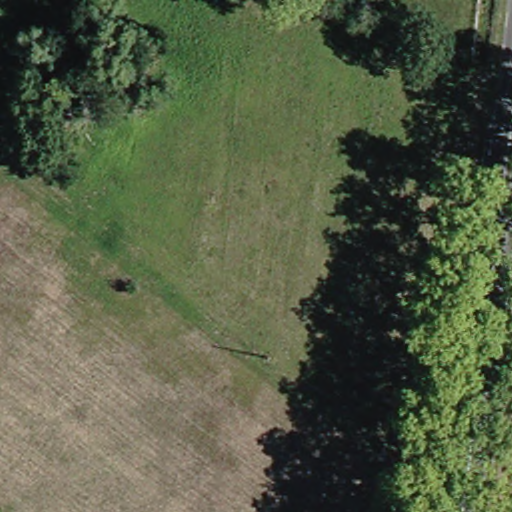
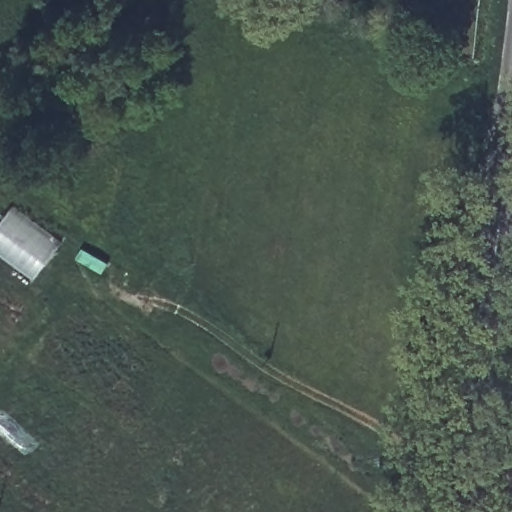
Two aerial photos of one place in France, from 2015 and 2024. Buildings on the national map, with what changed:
new [(15,206),(62,242),(33,280),(0,255),(0,225),(15,206)]

